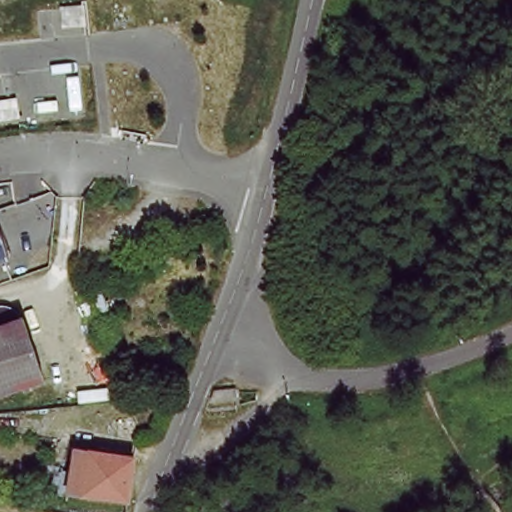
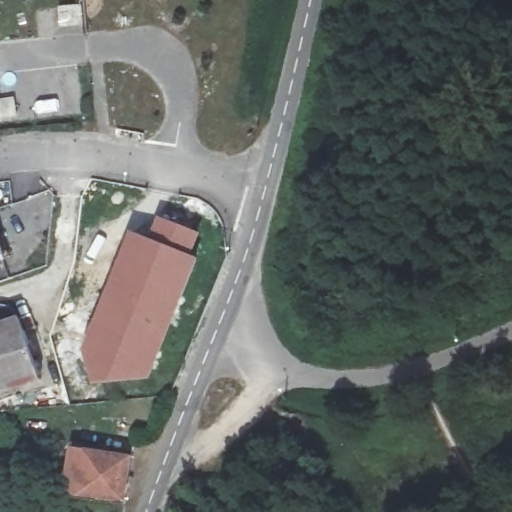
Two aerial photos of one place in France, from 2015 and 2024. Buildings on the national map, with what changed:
new [(157,216),(202,232),(193,255),(149,237),(157,216)]
new [(85,345),(131,231),(149,237),(193,255),(200,257),(149,377),(146,380),(141,381),(93,386),(85,352),(85,345)]
unchanged [(9,267),(0,270),(0,240),(9,267)]
unchanged [(5,312),(11,313),(16,316),(21,320),(24,324),(46,383),(0,400),(0,312),(5,312)]
unchanged [(74,461),(90,463),(92,457),(134,461),(128,505),(70,495),(74,461)]

